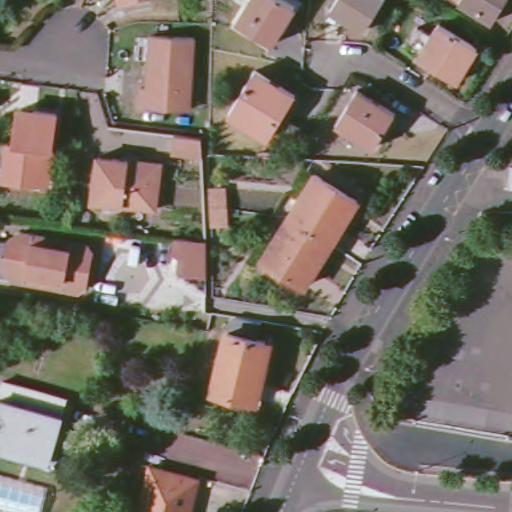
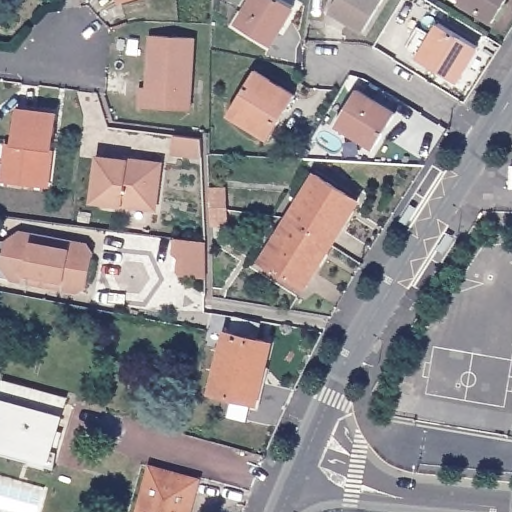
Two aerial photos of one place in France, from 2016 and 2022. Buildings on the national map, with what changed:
unchanged [(119,0),(125,0),(120,2),(119,0)]
unchanged [(253,0),(283,0),(295,7),(273,45),(238,24),(253,0)]
unchanged [(332,0),(378,0),(360,30),(326,10),(332,0)]
unchanged [(461,0),(506,0),(492,22),(460,1),(461,0)]
unchanged [(411,55),(425,35),(437,41),(445,30),(482,52),(462,86),(411,55)]
unchanged [(195,39),(191,111),(140,109),(140,89),(148,90),(150,37),(195,39)]
unchanged [(230,115),(256,71),(295,97),(269,139),(230,115)]
unchanged [(337,124),(358,91),(396,114),(375,147),(337,124)]
unchanged [(38,187),(0,182),(5,144),(12,146),(16,111),(55,116),(50,152),(45,187),(38,187)]
unchanged [(203,140),(203,158),(173,157),(175,136),(203,140)]
unchanged [(127,162),(126,166),(137,167),(138,162),(160,165),(155,211),(90,203),(96,159),(127,162)]
unchanged [(511,167),(512,168),(512,190),(510,190),(511,167)]
unchanged [(289,218),(315,175),(358,200),(330,244),(289,218)]
unchanged [(211,190),(226,189),(226,209),(227,225),(212,226),(211,209),(211,190)]
unchanged [(289,218),(330,244),(303,287),(262,261),(289,218)]
unchanged [(12,279),(2,266),(7,242),(20,232),(45,237),(49,243),(55,244),(61,240),(88,245),(95,254),(88,286),(80,292),(12,279)]
unchanged [(205,240),(207,277),(182,276),(177,271),(179,258),(172,252),(175,237),(205,240)]
unchanged [(216,397),(231,337),(237,338),(240,323),(241,322),(253,325),(267,328),(263,345),(272,347),(258,407),(216,397)]
unchanged [(3,378),(68,396),(67,402),(50,461),(0,447),(0,389),(1,384),(3,378)]
unchanged [(200,481),(191,512),(138,512),(151,467),(200,481)]

